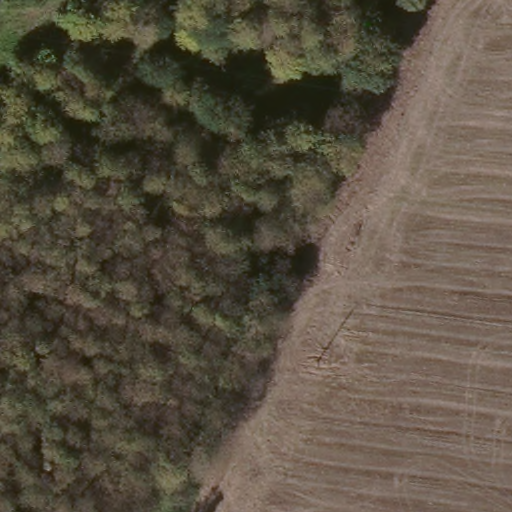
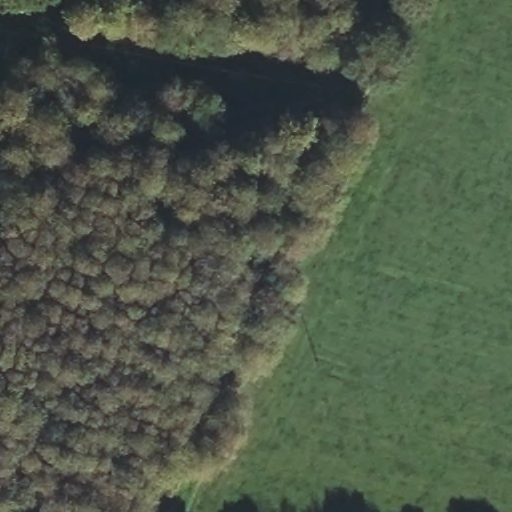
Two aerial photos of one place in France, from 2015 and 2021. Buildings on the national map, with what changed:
[]

